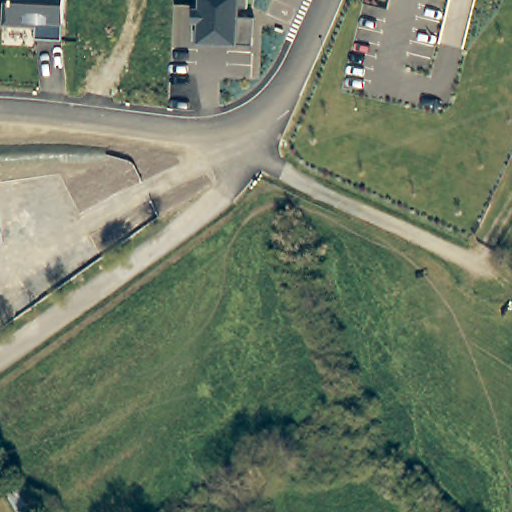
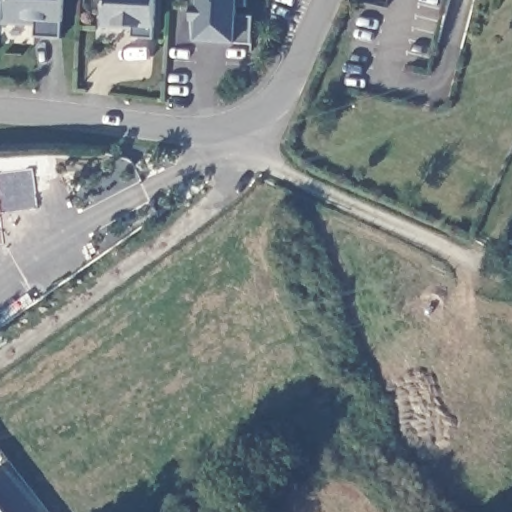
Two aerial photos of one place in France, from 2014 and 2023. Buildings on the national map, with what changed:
unchanged [(34,26),(5,25),(6,0),(64,0),(61,39),(33,36),(34,26)]
new [(134,37),(134,30),(102,29),(103,0),(155,0),(153,38),(134,37)]
unchanged [(240,10),(240,19),(260,20),(259,47),(204,45),(205,24),(200,24),(200,11),(205,11),(206,0),(253,0),(253,10),(240,10)]
unchanged [(0,231),(0,204),(4,230),(0,231)]
new [(5,512),(0,512),(0,505),(5,512)]

